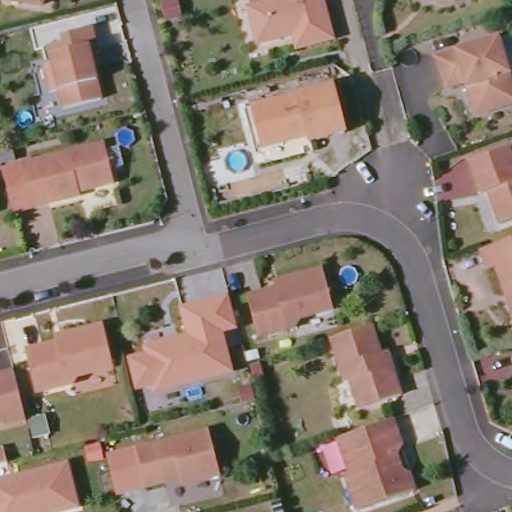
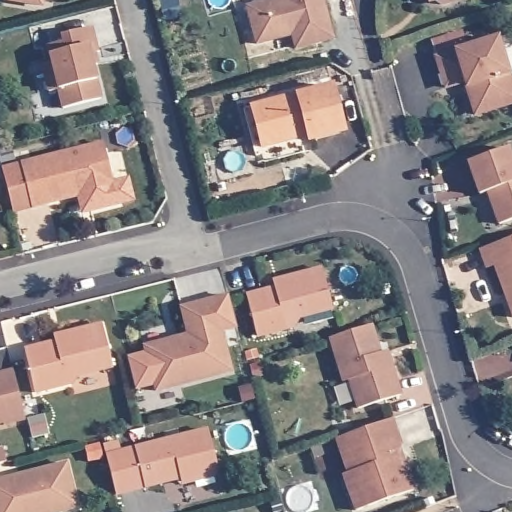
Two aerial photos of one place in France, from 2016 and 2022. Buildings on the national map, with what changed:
unchanged [(41,5),(6,0),(42,0),(41,5)]
unchanged [(328,39),(292,49),(289,35),(285,31),(278,33),(275,38),(254,44),(245,8),(275,0),(318,0),(328,39)]
unchanged [(454,4),(443,7),(436,2),(430,4),(429,0),(457,0),(454,4)]
unchanged [(90,28),(97,52),(88,54),(99,98),(60,107),(57,89),(47,91),(41,64),(50,62),(46,45),(62,41),(61,35),(90,28)]
unchanged [(460,85),(440,90),(432,58),(494,41),(512,104),(470,117),(460,85)]
unchanged [(333,87),(345,133),(310,142),(307,131),(298,133),(300,139),(264,148),(253,107),(333,87)]
unchanged [(105,143),(115,181),(87,188),(87,185),(79,186),(81,194),(33,206),(22,164),(105,143)]
unchanged [(18,147),(21,157),(7,160),(4,150),(18,147)]
unchanged [(475,196),(463,163),(504,149),(512,173),(512,220),(494,226),(482,194),(475,196)]
unchanged [(507,306),(509,300),(507,294),(503,295),(493,266),(485,269),(478,250),(512,239),(512,319),(511,319),(507,306)]
unchanged [(315,270),(325,310),(292,319),(287,328),(251,337),(240,297),(276,288),(275,281),(315,270)]
unchanged [(213,301),(230,373),(156,391),(145,347),(188,336),(182,309),(213,301)]
unchanged [(367,326),(379,363),(388,367),(397,397),(353,409),(345,382),(338,383),(325,339),(367,326)]
unchanged [(103,329),(112,372),(77,380),(72,387),(36,395),(27,353),(63,344),(67,337),(103,329)]
unchanged [(15,374),(26,422),(5,427),(4,425),(0,426),(0,377),(15,374)]
unchanged [(251,388),(255,402),(243,405),(240,391),(251,388)]
unchanged [(387,420),(397,450),(392,458),(395,472),(403,474),(408,492),(350,512),(339,475),(343,474),(332,439),(387,420)]
unchanged [(207,431),(217,476),(187,483),(185,477),(118,501),(106,459),(207,431)]
unchanged [(65,466),(75,510),(69,512),(0,512),(0,482),(65,466)]

